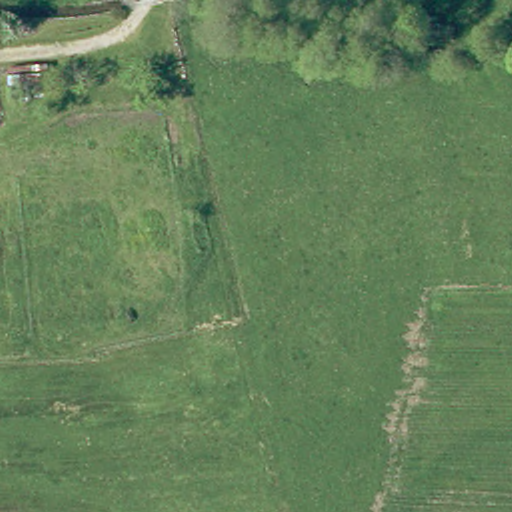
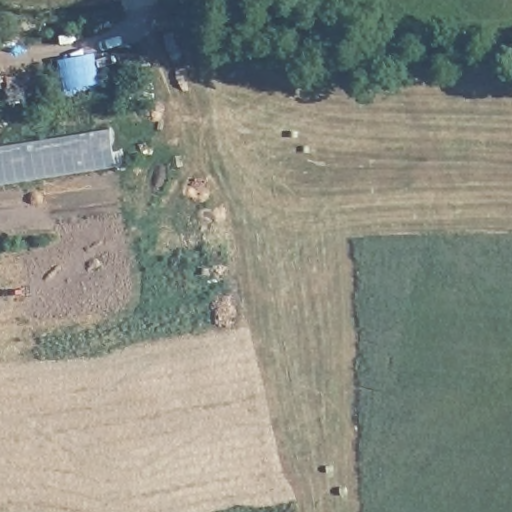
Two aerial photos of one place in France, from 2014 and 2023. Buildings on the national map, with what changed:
new [(113,129),(118,168),(0,185),(0,146),(113,129)]

